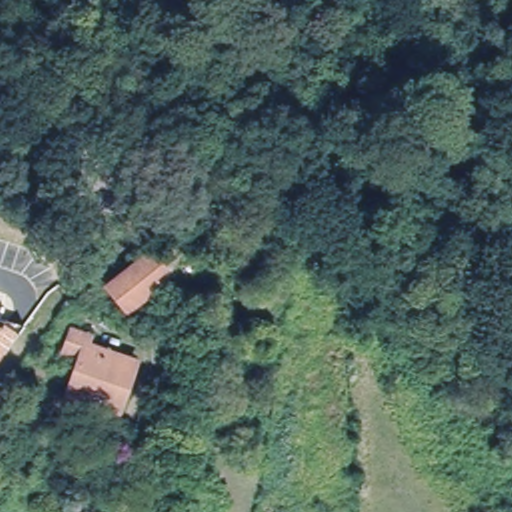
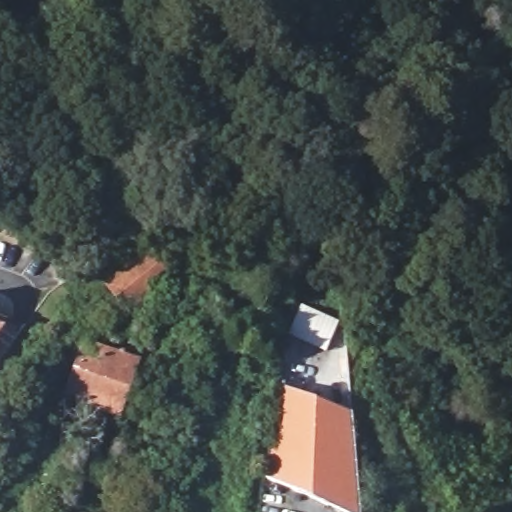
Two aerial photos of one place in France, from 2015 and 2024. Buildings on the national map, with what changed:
unchanged [(153,247),(166,263),(153,272),(159,280),(127,305),(109,280),(153,247)]
unchanged [(104,301),(121,310),(114,324),(97,315),(104,301)]
new [(287,335),(300,305),(338,322),(325,352),(287,335)]
unchanged [(6,320),(4,324),(18,335),(0,360),(0,318),(6,320)]
unchanged [(72,400),(83,367),(65,361),(74,334),(93,341),(90,350),(139,367),(121,417),(72,400)]
new [(351,415),(359,512),(341,512),(262,479),(276,387),(351,415)]

